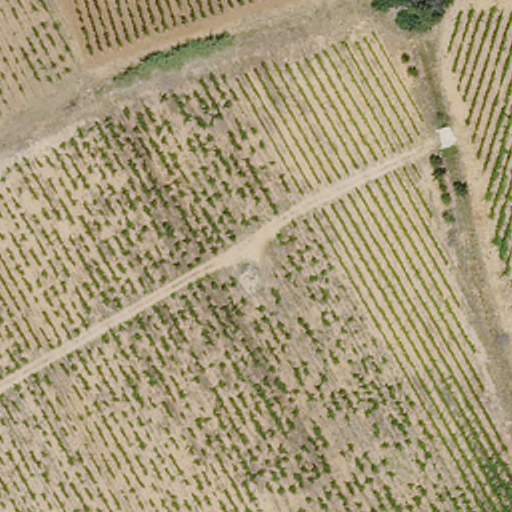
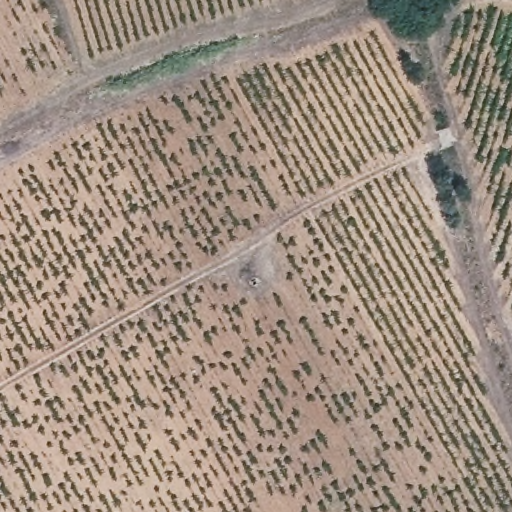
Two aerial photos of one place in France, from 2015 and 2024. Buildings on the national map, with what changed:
[]

